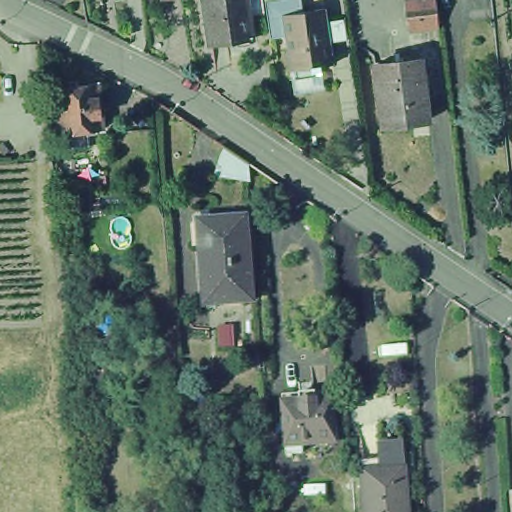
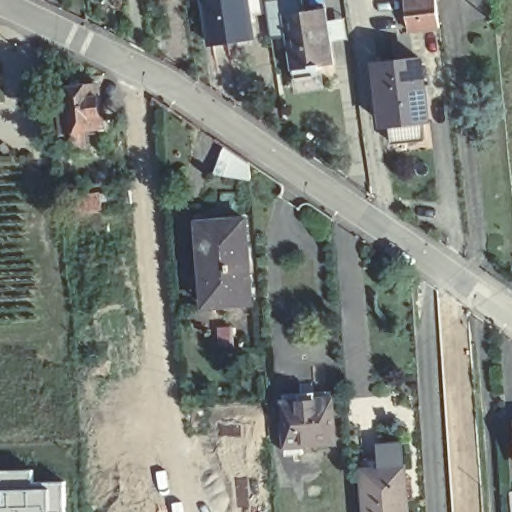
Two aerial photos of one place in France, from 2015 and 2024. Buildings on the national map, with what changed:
unchanged [(245,41),(203,47),(194,0),(238,0),(245,41)]
unchanged [(289,79),(289,71),(284,36),(269,38),(264,0),(301,0),(302,11),(324,8),(332,65),(318,67),(317,70),(310,71),(310,76),(289,79)]
unchanged [(404,2),(406,2),(406,0),(434,0),(438,28),(408,31),(404,2)]
unchanged [(418,119),(372,125),(364,65),(410,59),(418,119)]
unchanged [(96,132),(55,137),(50,91),(90,87),(96,132)]
unchanged [(248,161),(248,166),(249,177),(215,174),(218,151),(223,145),(248,161)]
unchanged [(68,214),(65,197),(98,192),(100,209),(68,214)]
unchanged [(243,223),(251,305),(203,310),(195,227),(243,223)]
unchanged [(329,442),(295,445),(296,452),(281,453),(276,400),(326,396),(329,442)]
new [(36,471),(36,484),(65,482),(66,512),(0,512),(0,471),(36,471)]
unchanged [(400,512),(359,512),(356,473),(397,471),(400,512)]
demolished [(329,497),(303,499),(302,484),(328,483),(329,497)]
demolished [(279,512),(279,488),(291,487),(292,512),(279,512)]
unchanged [(512,492),(512,512),(509,512),(507,493),(512,492)]

